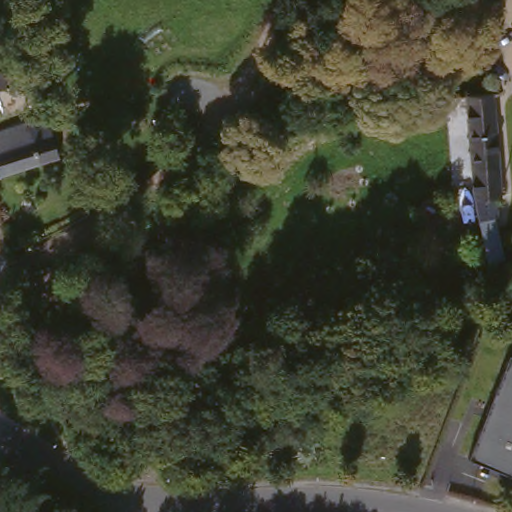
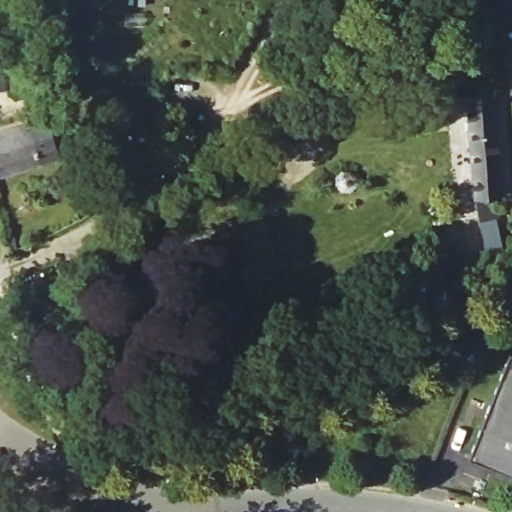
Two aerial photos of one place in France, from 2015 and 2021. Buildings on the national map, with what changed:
unchanged [(461,96),(489,96),(498,197),(491,198),(491,217),(473,219),(469,204),(461,96)]
unchanged [(49,132),(58,157),(39,163),(0,177),(0,131),(26,123),(31,138),(49,132)]
unchanged [(471,456),(512,352),(512,472),(471,456)]

